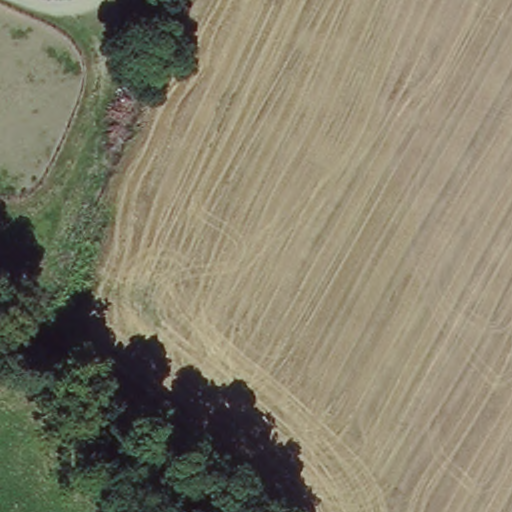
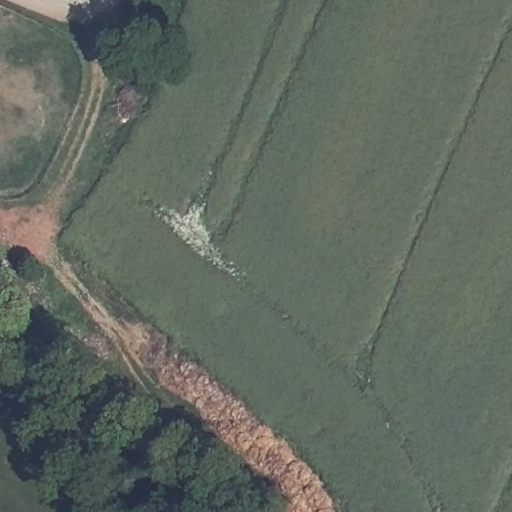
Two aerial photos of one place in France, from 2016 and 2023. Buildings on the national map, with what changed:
[]

